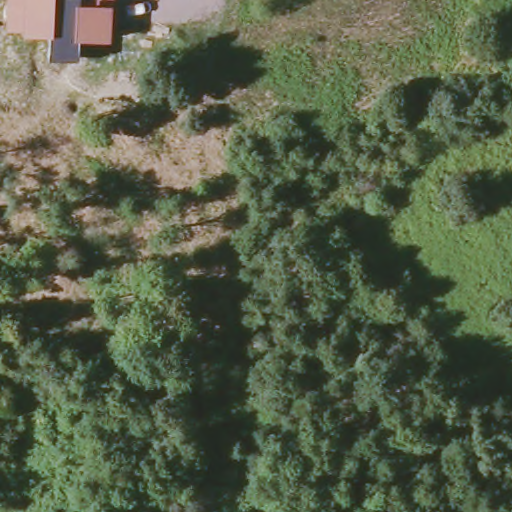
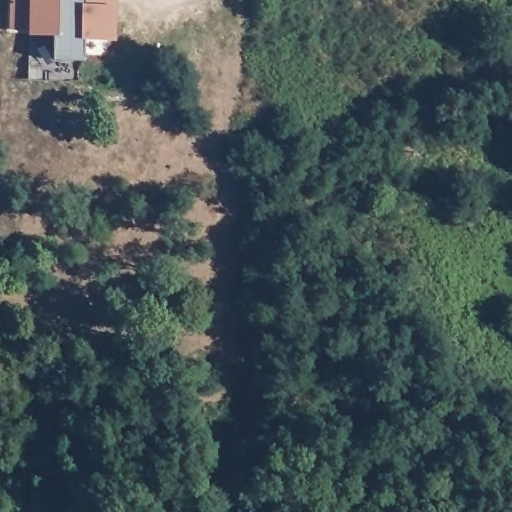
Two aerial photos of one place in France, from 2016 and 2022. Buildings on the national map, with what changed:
unchanged [(81,43),(80,64),(52,64),(53,43),(23,42),(23,31),(9,30),(10,0),(115,0),(115,45),(81,43)]

